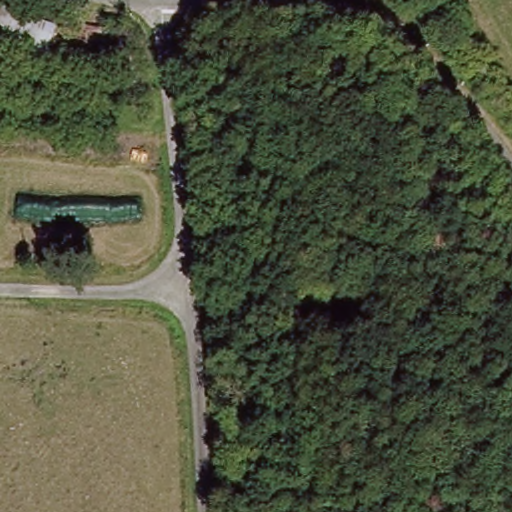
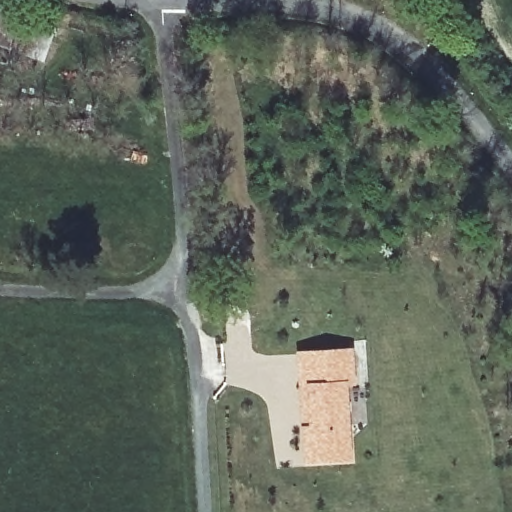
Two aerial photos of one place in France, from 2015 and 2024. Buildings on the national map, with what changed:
unchanged [(52,24),(41,58),(0,46),(0,8),(52,24)]
new [(351,354),(353,387),(346,387),(333,387),(332,371),(301,373),(300,357),(351,354)]
new [(333,387),(346,387),(350,463),(306,465),(304,432),(302,390),(301,373),(332,371),(333,387)]

